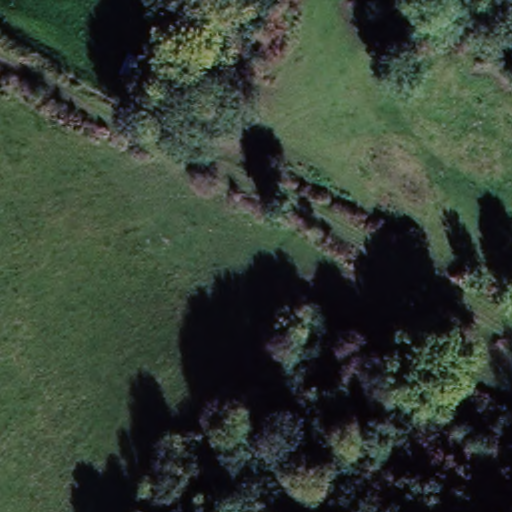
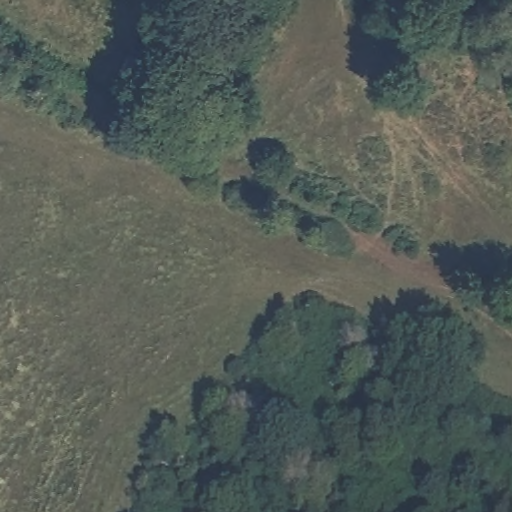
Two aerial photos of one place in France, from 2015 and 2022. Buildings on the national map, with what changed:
unchanged [(149,85),(126,75),(141,37),(165,47),(149,85)]

